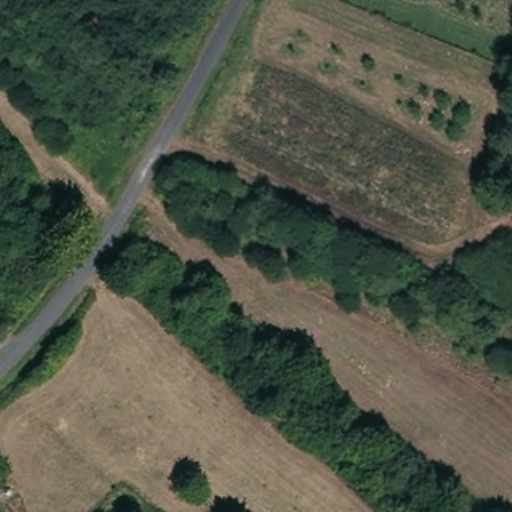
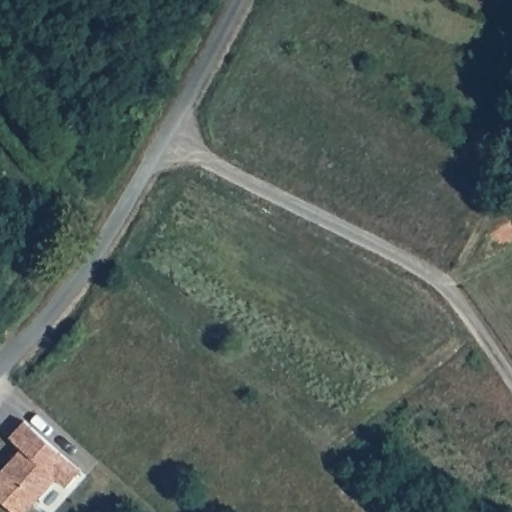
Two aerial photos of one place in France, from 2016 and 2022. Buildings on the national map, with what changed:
new [(65,486),(54,477),(25,512),(14,512),(0,498),(0,470),(22,446),(10,436),(25,420),(80,468),(65,486)]

